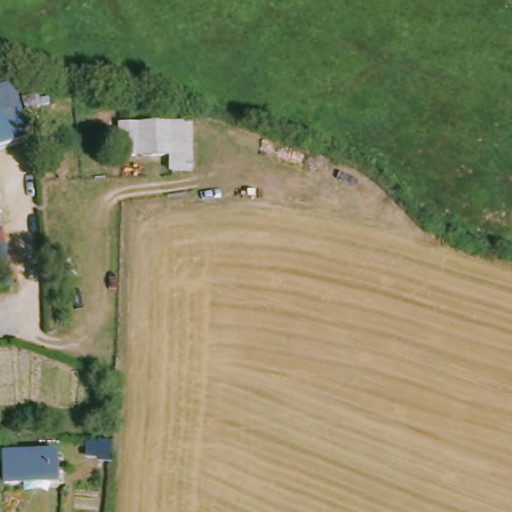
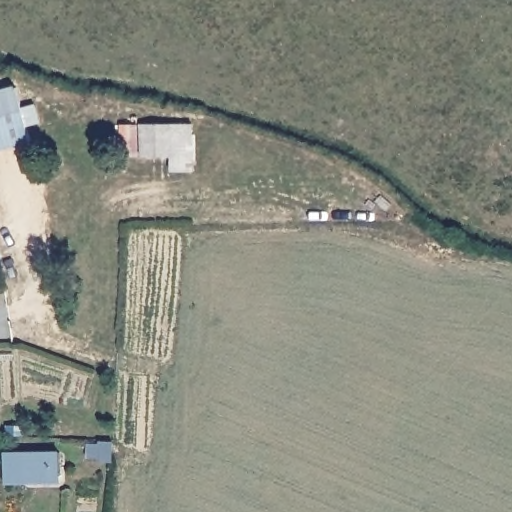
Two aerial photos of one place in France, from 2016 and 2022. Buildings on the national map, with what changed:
unchanged [(17,85),(26,110),(35,139),(0,149),(0,91),(17,85)]
unchanged [(202,175),(175,177),(175,161),(123,161),(123,124),(202,121),(202,175)]
unchanged [(107,469),(96,469),(97,464),(85,463),(85,449),(108,453),(107,469)]
unchanged [(65,460),(65,487),(10,483),(11,458),(65,460)]

